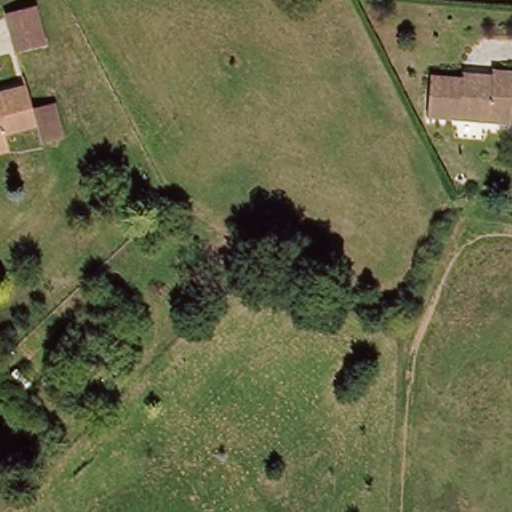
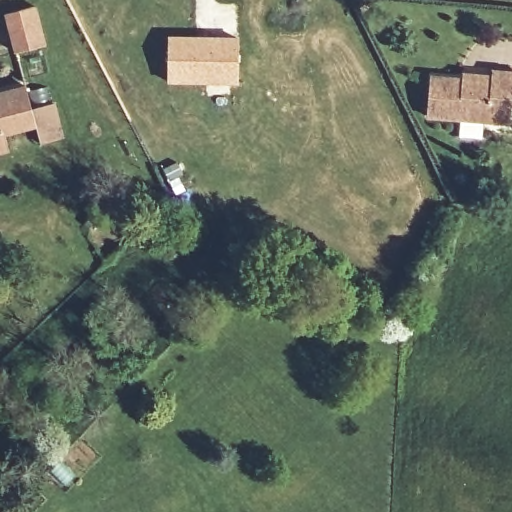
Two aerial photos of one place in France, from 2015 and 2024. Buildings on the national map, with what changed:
unchanged [(5,15),(32,7),(43,46),(17,54),(5,15)]
new [(239,83),(167,81),(168,35),(240,37),(239,83)]
unchanged [(494,71),(512,73),(512,116),(512,122),(429,116),(432,76),(465,78),(465,74),(477,75),(494,76),(494,71)]
unchanged [(0,94),(25,88),(32,107),(53,100),(63,136),(0,152),(0,94)]

